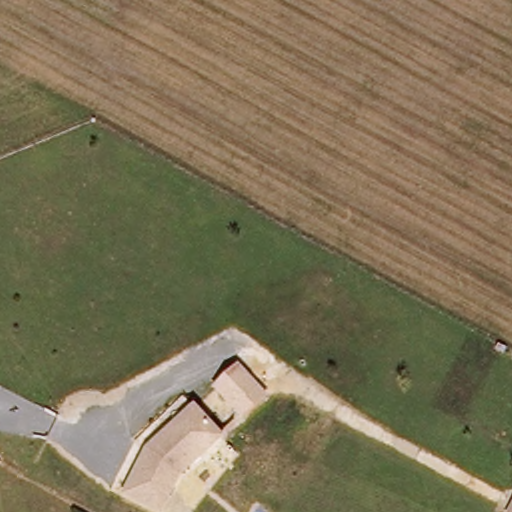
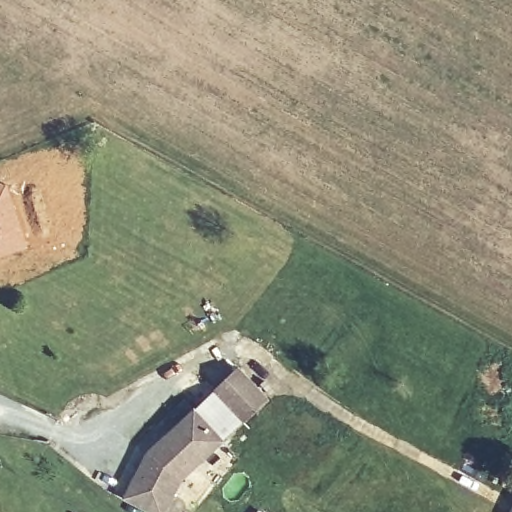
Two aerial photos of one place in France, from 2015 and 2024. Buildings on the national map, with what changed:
new [(28,246),(0,256),(0,184),(8,181),(28,246)]
unchanged [(268,400),(242,423),(212,390),(239,367),(268,400)]
unchanged [(186,480),(168,512),(146,512),(121,499),(144,450),(192,408),(227,441),(186,480)]

